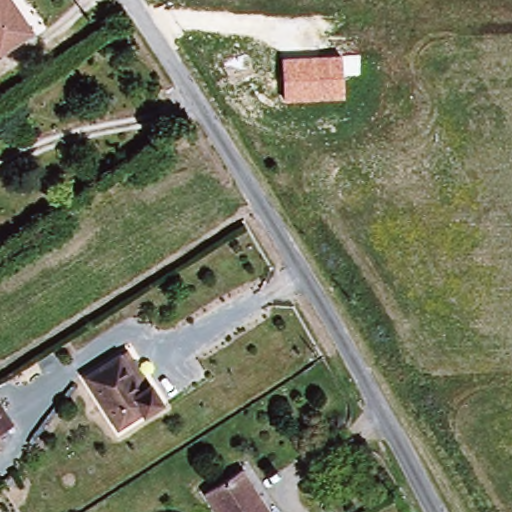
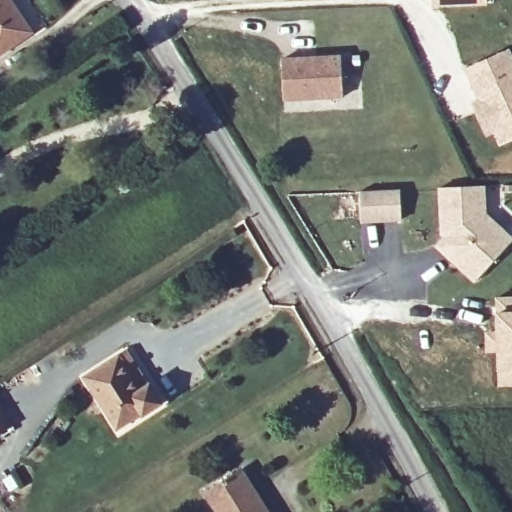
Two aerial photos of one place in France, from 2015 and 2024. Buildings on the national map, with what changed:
unchanged [(0,59),(0,0),(14,0),(37,35),(0,59)]
new [(481,4),(431,5),(431,0),(481,0),(481,4)]
new [(506,51),(512,67),(512,137),(494,144),(488,131),(481,134),(472,111),(479,108),(463,68),(506,51)]
unchanged [(342,55),(343,97),(283,100),(282,59),(342,55)]
new [(487,212),(512,235),(512,241),(474,283),(434,245),(441,238),(438,187),(486,185),(487,212)]
new [(401,190),(402,221),(361,223),(361,192),(401,190)]
new [(512,298),(512,384),(499,384),(497,298),(512,298)]
unchanged [(142,420),(139,414),(118,428),(83,371),(117,350),(125,345),(147,381),(164,406),(142,420)]
unchanged [(0,438),(0,395),(20,426),(0,438)]
unchanged [(275,512),(219,512),(207,491),(246,467),(270,505),(275,512)]

